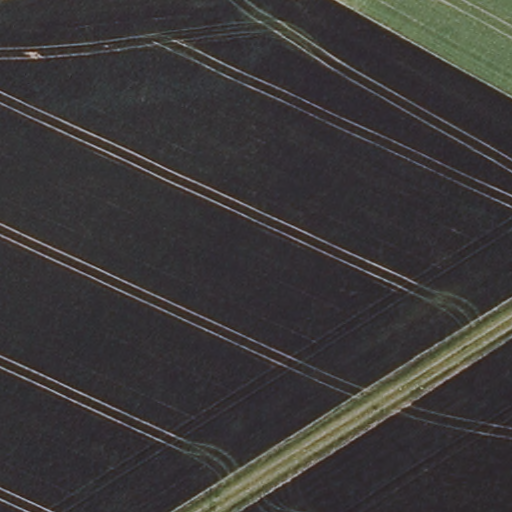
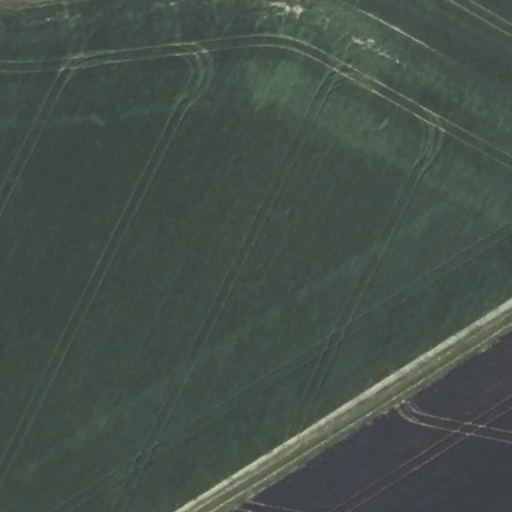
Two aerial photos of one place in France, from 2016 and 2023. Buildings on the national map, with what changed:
unchanged [(0,5),(0,0),(3,0),(1,5),(0,5)]

